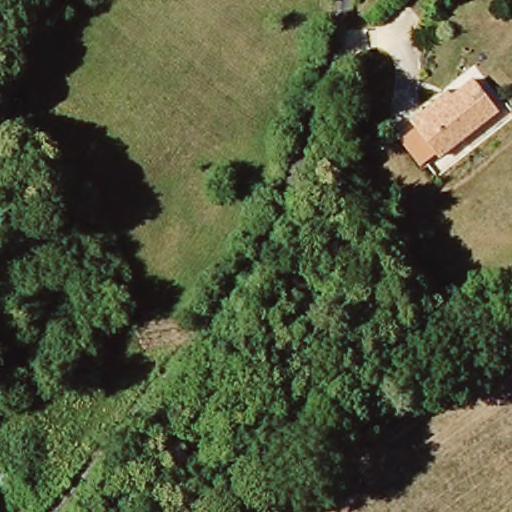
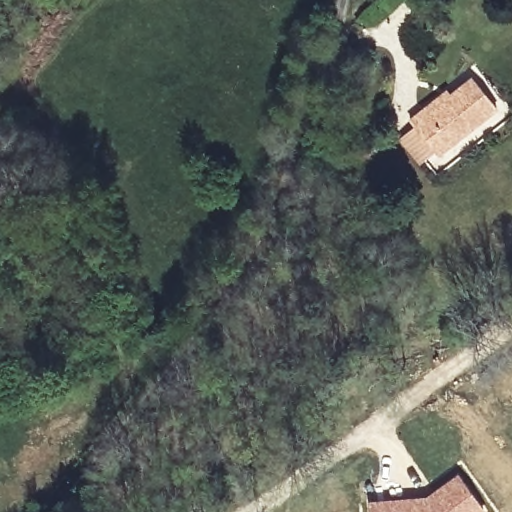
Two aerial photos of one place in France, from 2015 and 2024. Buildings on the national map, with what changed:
unchanged [(408,120),(422,109),(425,113),(471,77),(495,107),(436,154),(408,120)]
new [(425,494),(457,472),(485,512),(366,512),(365,500),(425,494)]

